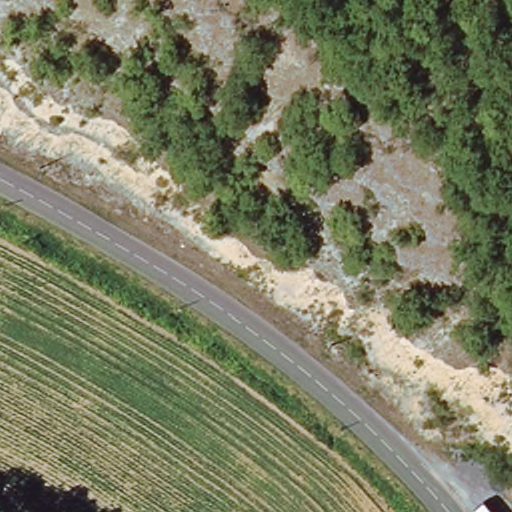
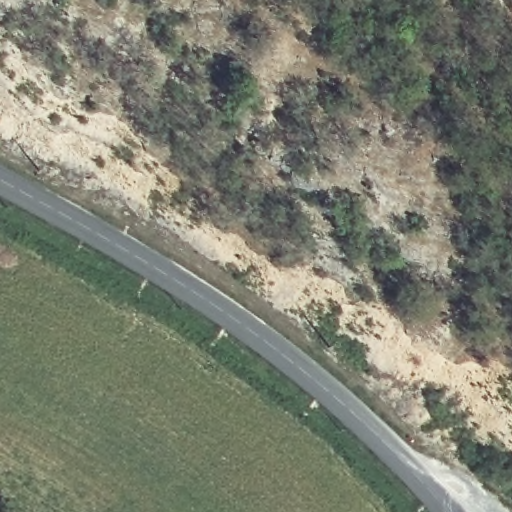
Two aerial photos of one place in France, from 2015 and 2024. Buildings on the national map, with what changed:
[]

